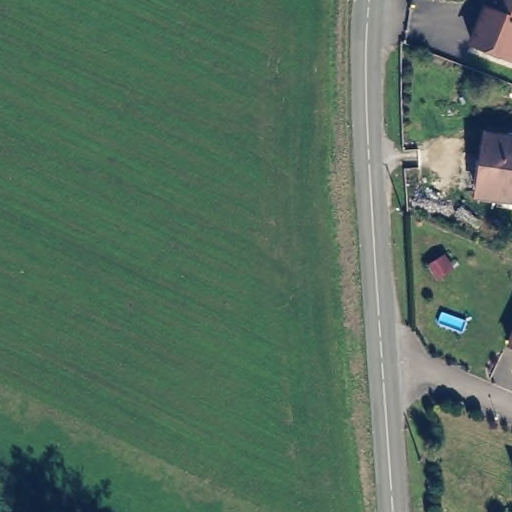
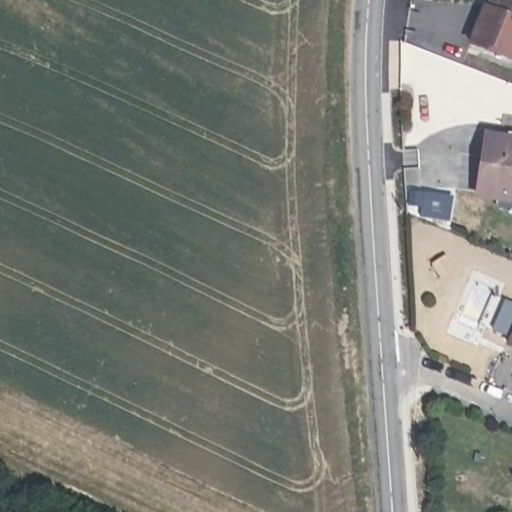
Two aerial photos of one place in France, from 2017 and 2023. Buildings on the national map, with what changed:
unchanged [(512,65),(465,47),(480,14),(485,15),(492,0),(512,0),(512,64),(512,65)]
unchanged [(475,188),(482,128),(512,132),(512,193),(475,188)]
unchanged [(510,347),(512,343),(512,348),(510,347)]

